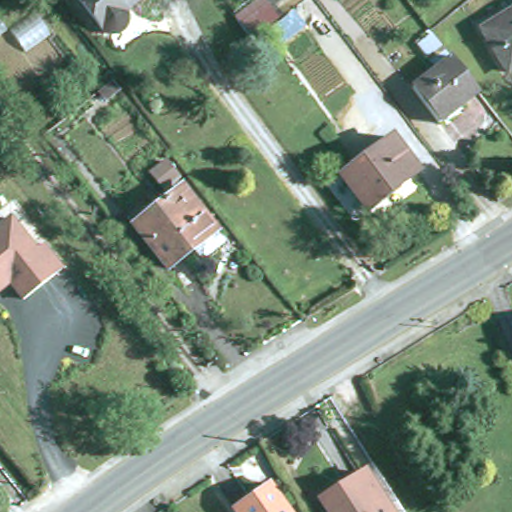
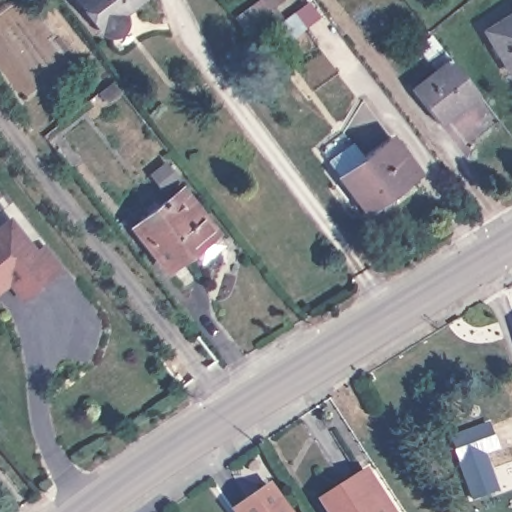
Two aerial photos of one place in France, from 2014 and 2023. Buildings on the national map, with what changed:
unchanged [(126,20),(126,25),(125,30),(122,34),(118,36),(113,38),(108,38),(105,36),(77,0),(144,0),(125,16),(126,20)]
unchanged [(490,33),(512,19),(512,69),(490,33)]
unchanged [(417,96),(456,66),(483,101),(443,130),(417,96)]
unchanged [(114,80),(120,88),(107,98),(101,90),(114,80)]
unchanged [(394,144),(420,179),(366,220),(340,185),(394,144)]
unchanged [(170,169),(232,252),(206,274),(196,261),(172,278),(136,235),(175,203),(156,181),(170,169)]
unchanged [(33,257),(41,251),(50,263),(60,277),(53,282),(21,307),(8,289),(4,292),(3,293),(0,294),(0,233),(9,226),(33,257)]
new [(489,422),(498,446),(484,451),(497,488),(474,497),(452,436),(489,422)]
unchanged [(320,509),(365,479),(375,472),(400,512),(322,512),(320,509)]
unchanged [(234,507),(264,486),(270,482),(283,501),(290,512),(238,512),(234,507)]

